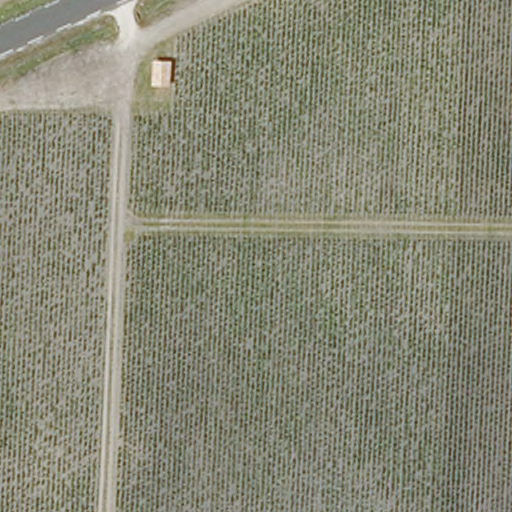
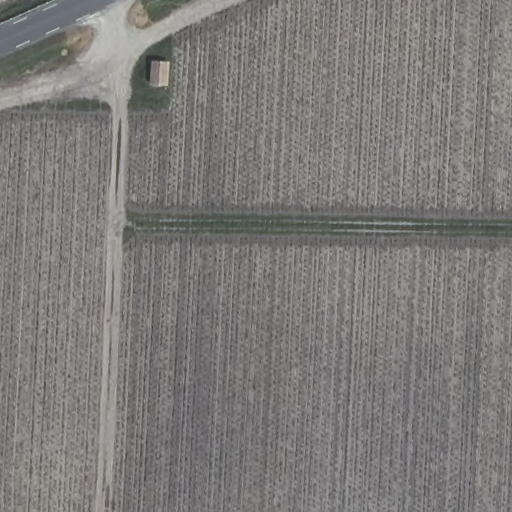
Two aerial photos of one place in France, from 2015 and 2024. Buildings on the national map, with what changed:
unchanged [(150,61),(169,61),(166,92),(150,90),(150,61)]

